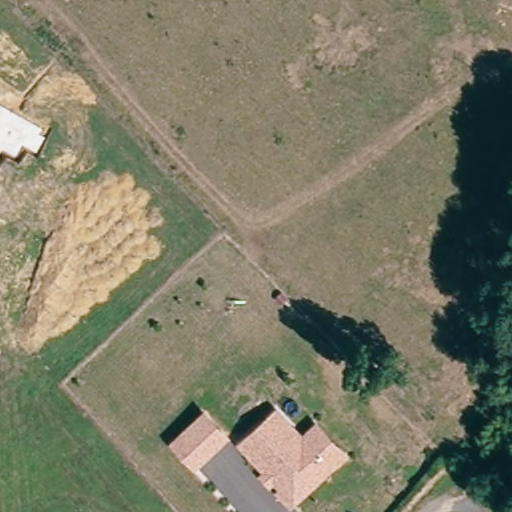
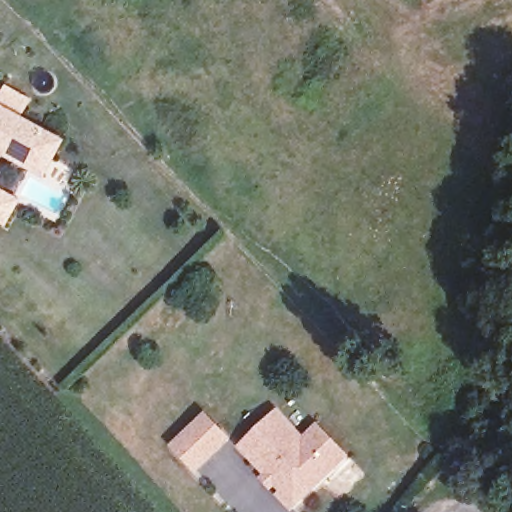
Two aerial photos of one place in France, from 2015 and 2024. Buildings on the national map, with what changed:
new [(0,160),(0,105),(64,139),(43,175),(3,155),(0,160)]
new [(5,224),(0,222),(0,186),(20,198),(5,224)]
unchanged [(266,479),(270,474),(244,448),(279,413),(305,439),(309,436),(319,425),(349,454),(338,464),(295,507),(284,494),(287,491),(278,482),(274,486),(266,479)]
unchanged [(231,439),(194,474),(168,446),(203,414),(231,439)]

